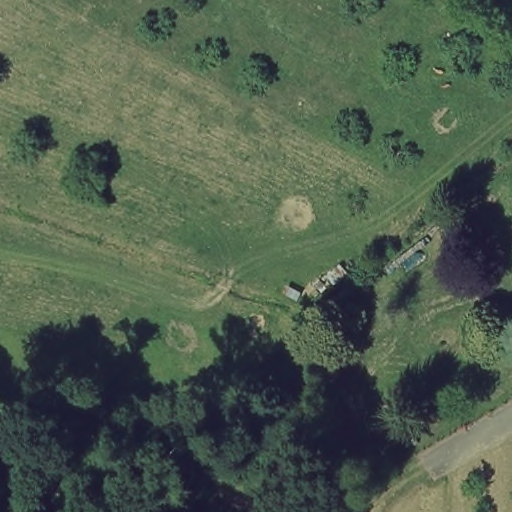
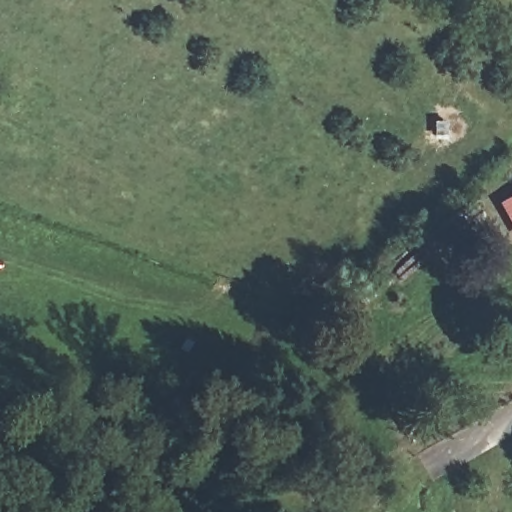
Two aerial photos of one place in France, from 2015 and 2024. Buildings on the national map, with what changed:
[]

